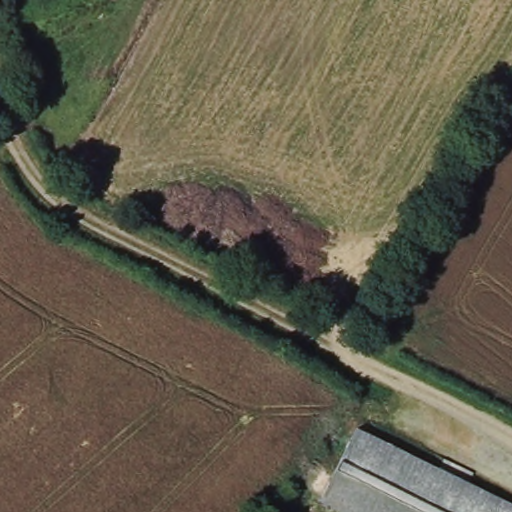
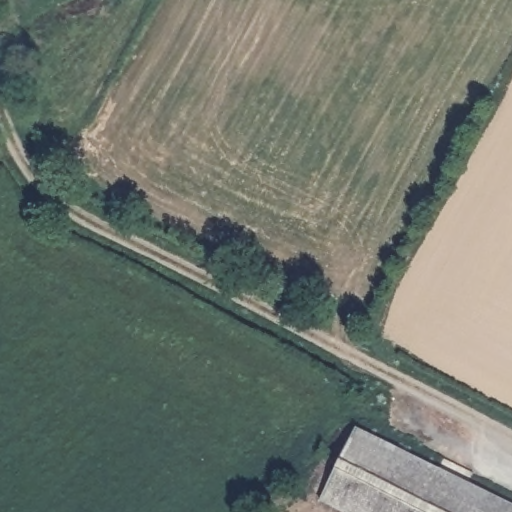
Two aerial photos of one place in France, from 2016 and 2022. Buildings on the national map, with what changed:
unchanged [(512,503),(512,512),(354,512),(321,495),(358,424),(512,503)]

